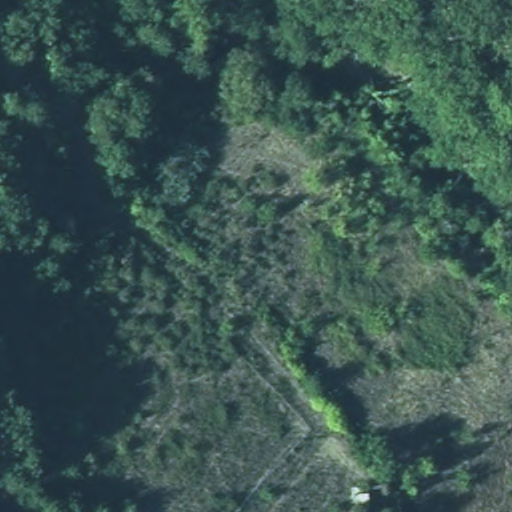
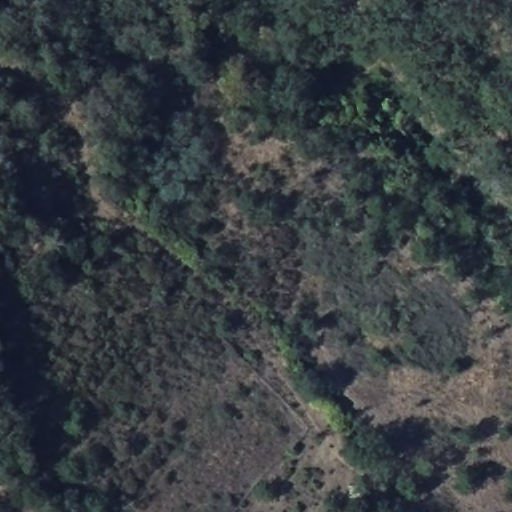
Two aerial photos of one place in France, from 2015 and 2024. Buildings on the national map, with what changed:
unchanged [(368,495),(372,507),(360,510),(355,491),(368,495)]

